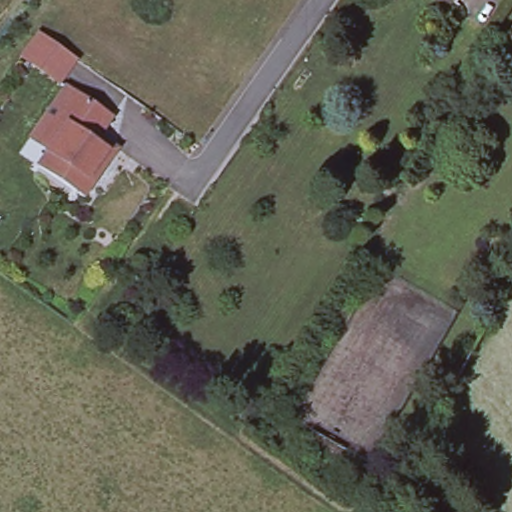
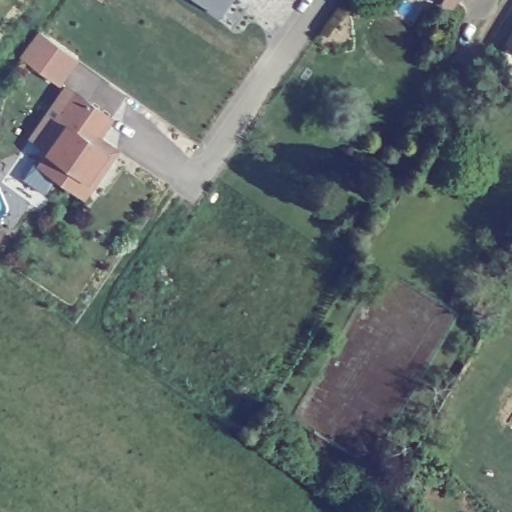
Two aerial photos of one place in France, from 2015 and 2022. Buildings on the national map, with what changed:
new [(196,0),(232,0),(220,18),(196,0)]
unchanged [(512,28),(512,47),(503,42),(512,28)]
unchanged [(38,31),(77,57),(59,82),(20,55),(38,31)]
unchanged [(98,186),(99,187),(89,201),(43,170),(53,155),(45,150),(58,131),(56,130),(79,97),(116,123),(102,143),(120,155),(98,186)]

